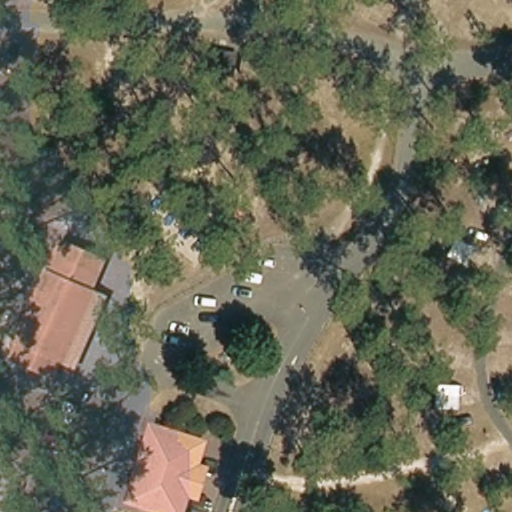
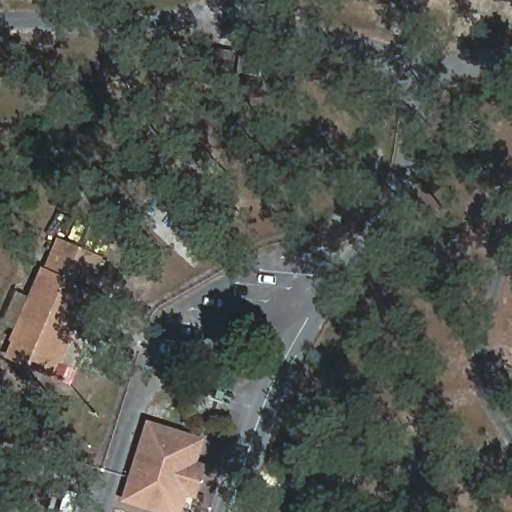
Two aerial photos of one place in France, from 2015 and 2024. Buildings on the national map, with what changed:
unchanged [(54,379),(7,356),(55,236),(105,256),(54,379)]
unchanged [(183,512),(155,512),(121,501),(147,419),(205,436),(199,461),(207,464),(199,498),(189,495),(183,512)]

